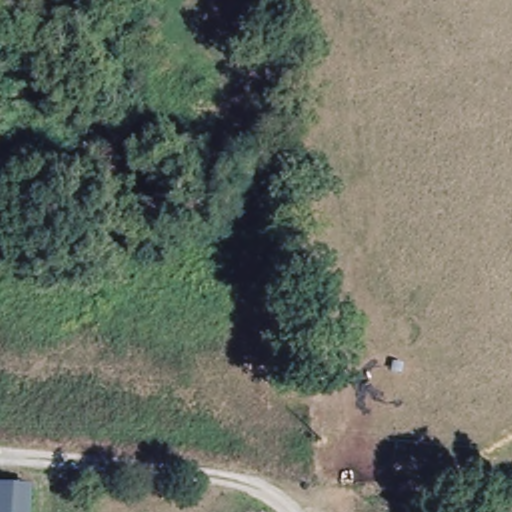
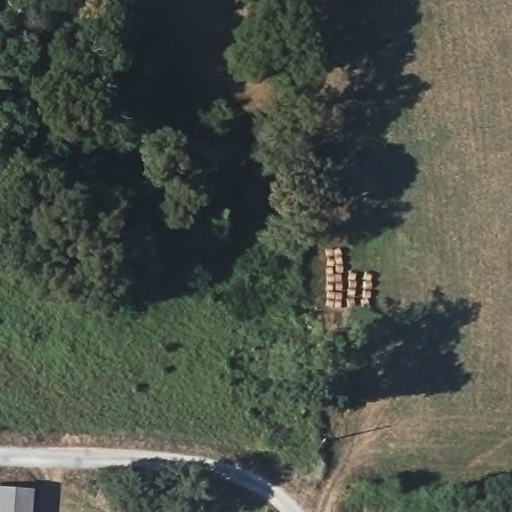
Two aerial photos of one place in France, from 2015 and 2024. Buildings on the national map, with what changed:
unchanged [(33,512),(0,512),(0,491),(35,494),(33,512)]

